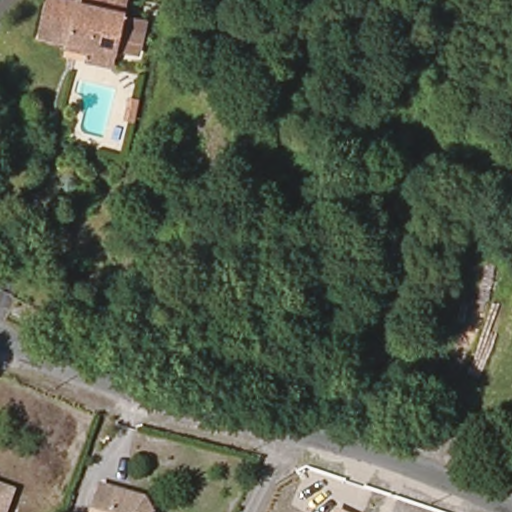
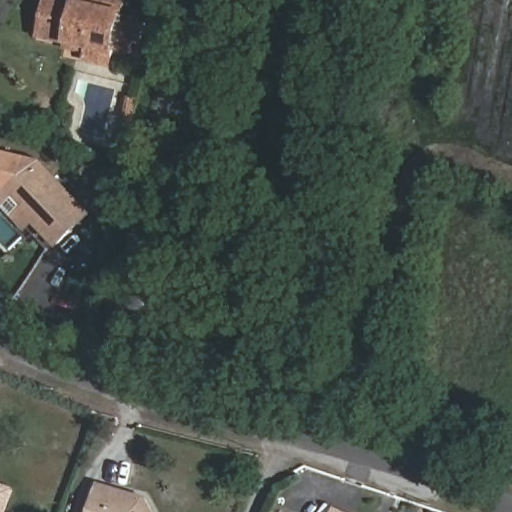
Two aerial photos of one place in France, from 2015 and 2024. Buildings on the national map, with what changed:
unchanged [(144,20),(138,56),(112,52),(109,62),(87,57),(90,45),(42,33),(50,0),(61,0),(75,3),(75,0),(123,0),(120,17),(144,20)]
unchanged [(120,116),(122,97),(138,101),(134,119),(120,116)]
new [(57,249),(35,226),(27,232),(0,203),(0,196),(3,193),(0,192),(0,151),(40,157),(94,214),(57,249)]
unchanged [(142,495),(149,508),(142,512),(92,512),(102,482),(142,495)]
unchanged [(11,490),(4,512),(0,512),(0,485),(11,490)]
unchanged [(335,510),(341,512),(334,512),(335,510)]

